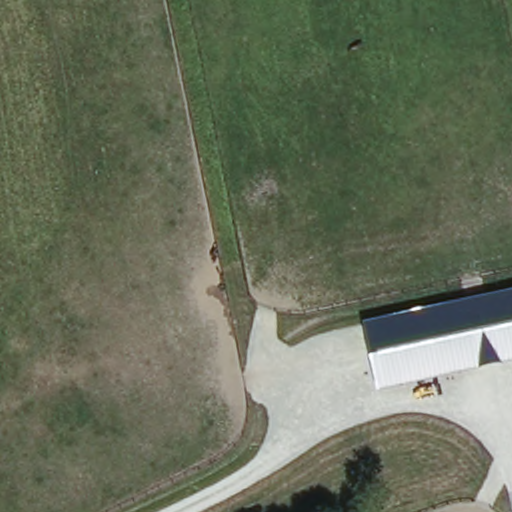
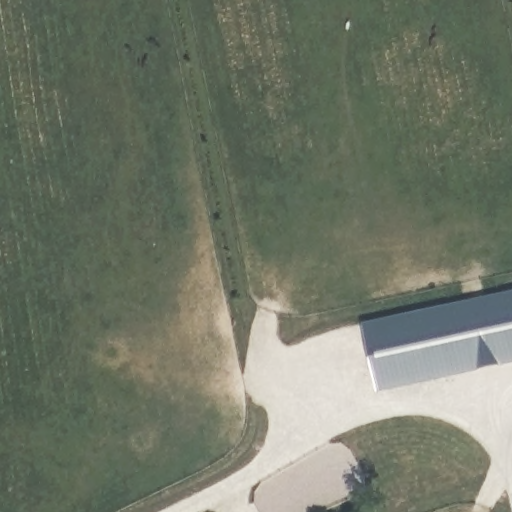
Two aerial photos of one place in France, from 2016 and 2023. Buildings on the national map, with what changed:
unchanged [(512,292),(512,362),(377,391),(362,323),(512,292)]

